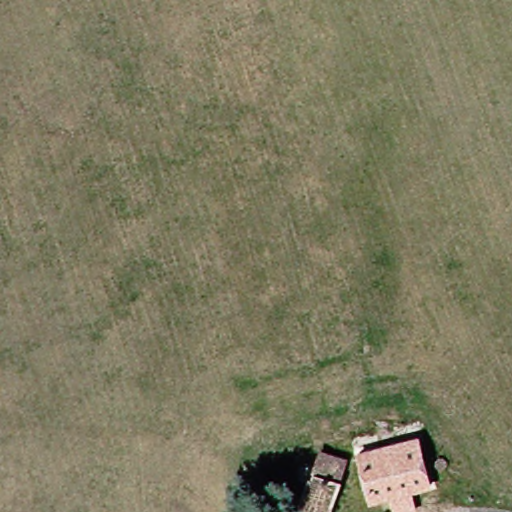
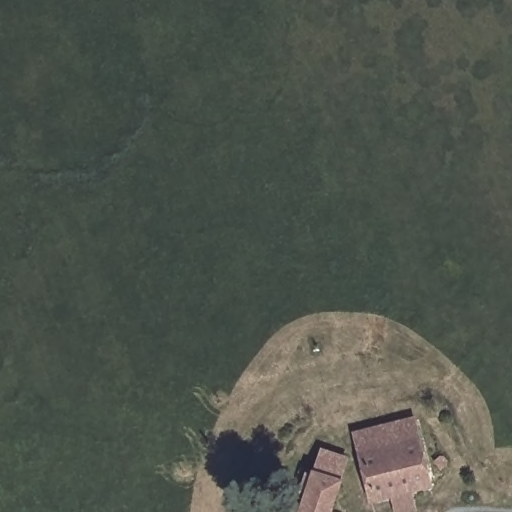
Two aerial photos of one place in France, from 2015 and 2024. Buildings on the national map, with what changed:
unchanged [(406,485),(411,503),(392,509),(388,490),(369,495),(356,451),(414,436),(426,480),(406,485)]
unchanged [(311,452),(341,463),(336,481),(327,512),(292,512),(304,469),(311,452)]

